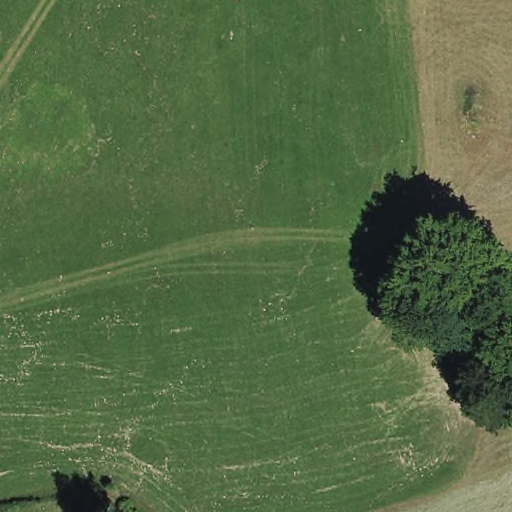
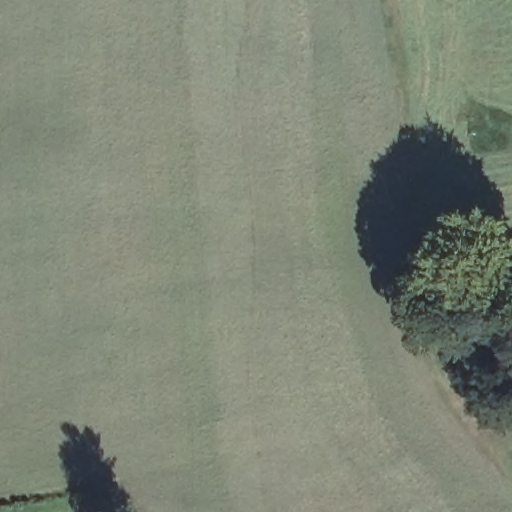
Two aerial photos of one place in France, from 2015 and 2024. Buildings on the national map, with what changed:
[]

